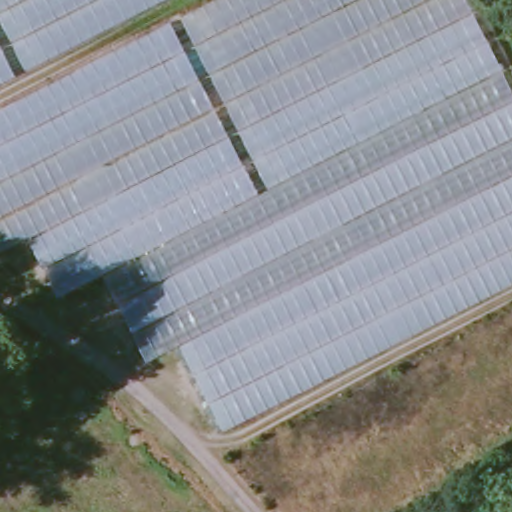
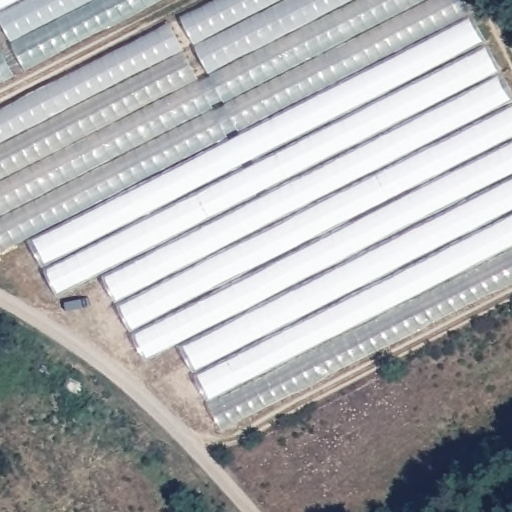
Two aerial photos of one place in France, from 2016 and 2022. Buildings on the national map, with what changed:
unchanged [(155,0),(23,66),(0,22),(0,0),(155,0)]
unchanged [(255,193),(265,186),(179,16),(210,0),(465,0),(512,92),(512,278),(220,426),(177,341),(143,357),(100,271),(55,294),(26,235),(0,248),(0,108),(169,21),(255,193)]
unchanged [(12,72),(0,78),(0,49),(12,72)]

